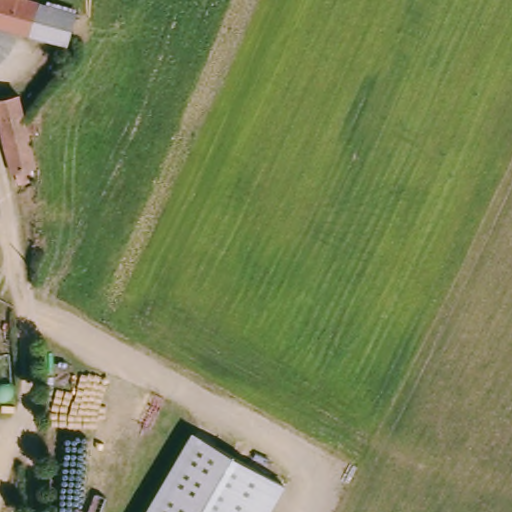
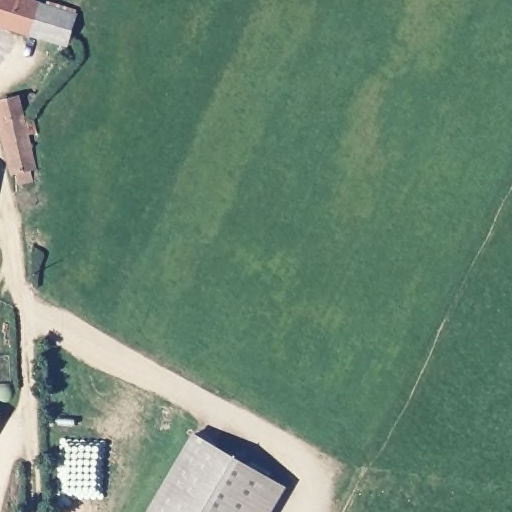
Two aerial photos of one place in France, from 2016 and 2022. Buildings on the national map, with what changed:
unchanged [(76,12),(68,35),(65,43),(0,22),(0,0),(42,0),(76,12)]
unchanged [(25,114),(38,163),(35,165),(30,167),(28,163),(22,165),(22,169),(12,172),(5,145),(0,115),(0,98),(19,92),(25,114)]
unchanged [(0,423),(0,414),(4,416),(0,423)]
unchanged [(274,512),(148,512),(194,432),(289,487),(274,512)]

